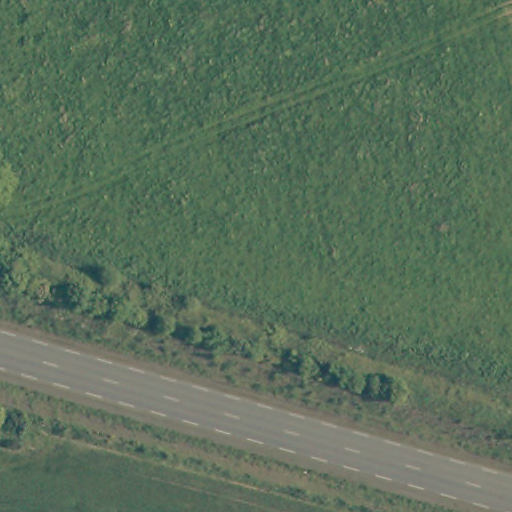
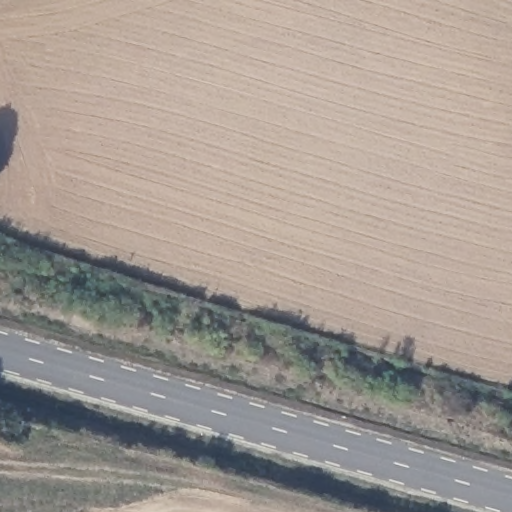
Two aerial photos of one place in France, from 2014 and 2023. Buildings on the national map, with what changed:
[]

